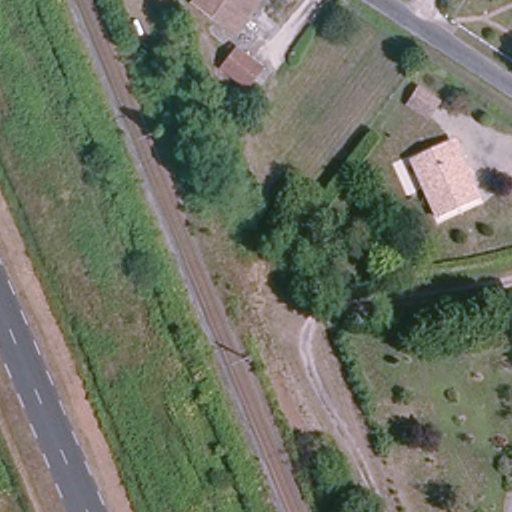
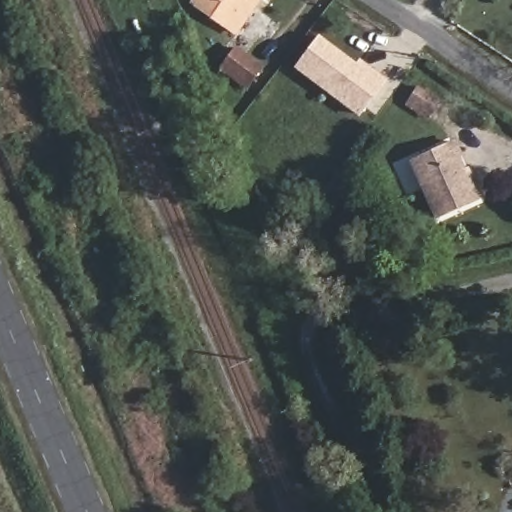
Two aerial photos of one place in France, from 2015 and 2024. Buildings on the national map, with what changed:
unchanged [(198,0),(267,0),(243,35),(196,2),(198,0)]
new [(319,34),(365,69),(369,64),(389,79),(360,116),(296,69),(319,34)]
unchanged [(221,69),(237,46),(265,65),(249,92),(221,69)]
unchanged [(404,101),(413,86),(435,103),(425,117),(404,101)]
unchanged [(409,169),(447,145),(484,200),(447,225),(409,169)]

